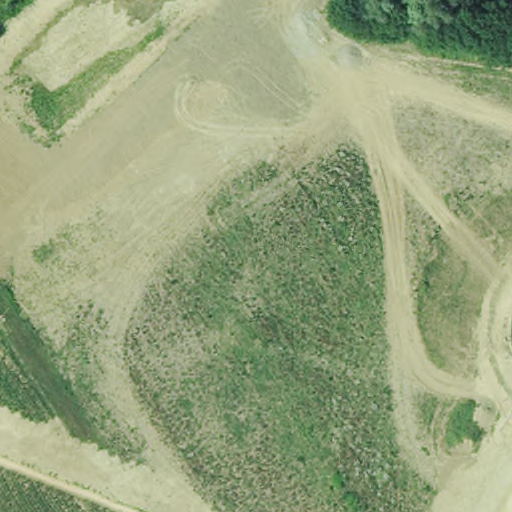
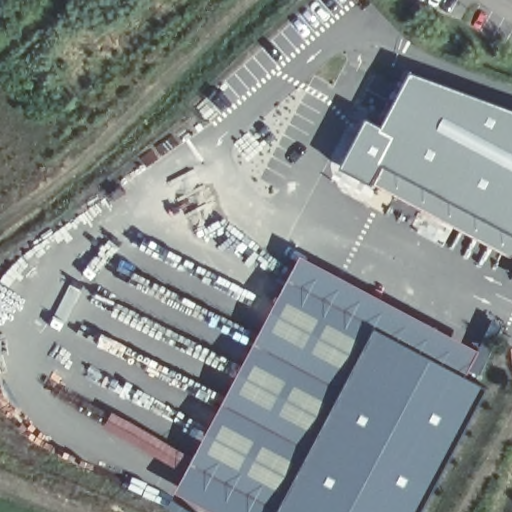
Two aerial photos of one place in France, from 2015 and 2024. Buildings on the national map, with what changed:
new [(395,172),(388,191),(359,180),(377,131),(390,136),(412,75),(512,110),(512,213),(395,172)]
new [(287,281),(290,282),(300,288),(374,328),(276,512),(275,512),(188,466),(287,281)]
new [(421,512),(276,512),(373,330),(487,391),(421,512)]

